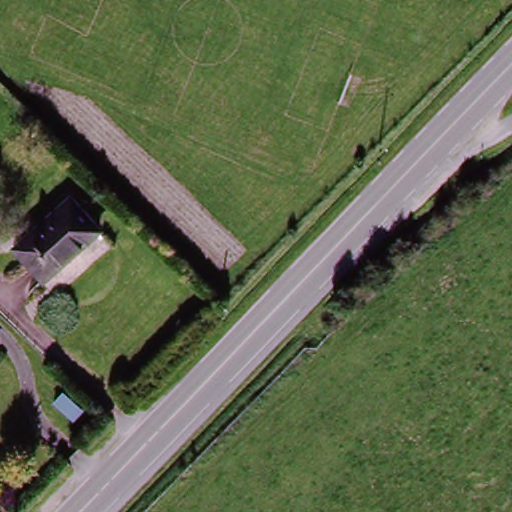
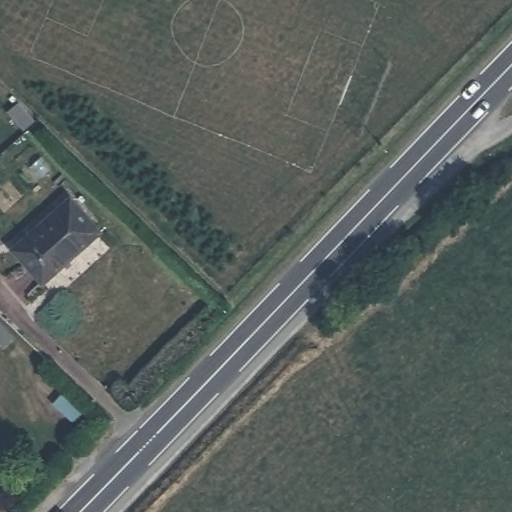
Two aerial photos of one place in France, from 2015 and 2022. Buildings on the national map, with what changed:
unchanged [(99,237),(40,289),(9,252),(68,202),(99,237)]

